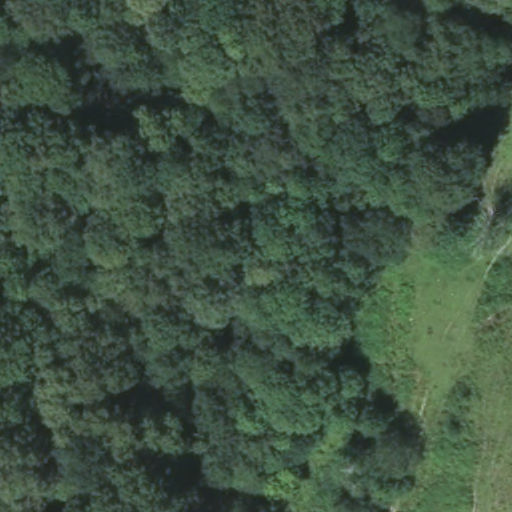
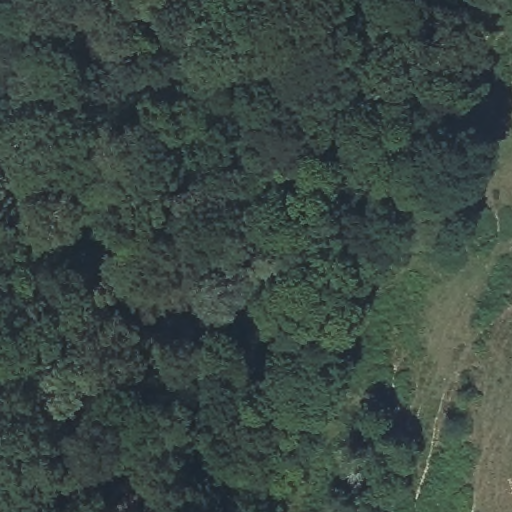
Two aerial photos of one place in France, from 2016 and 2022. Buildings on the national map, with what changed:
[]

